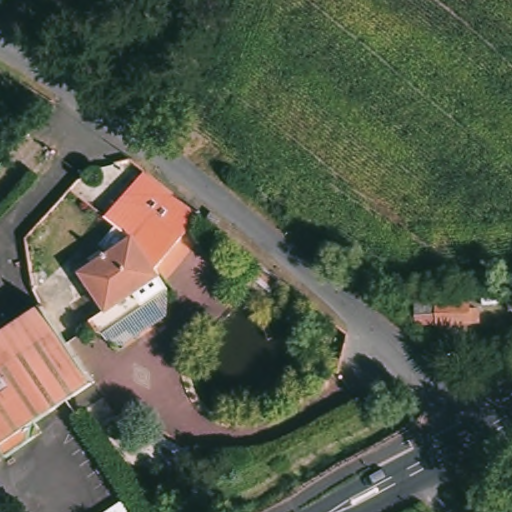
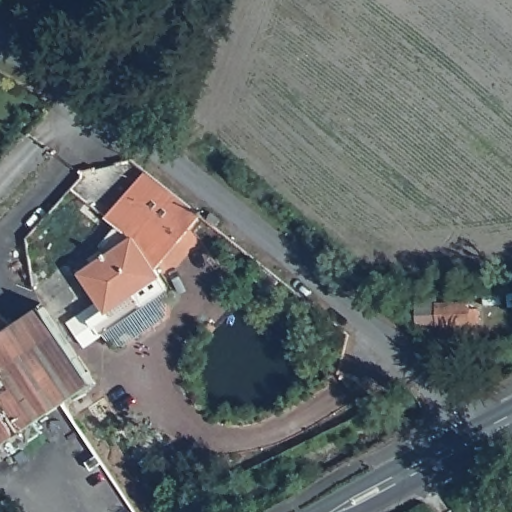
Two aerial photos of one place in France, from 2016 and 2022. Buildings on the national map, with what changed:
unchanged [(144,265),(116,282),(123,293),(92,310),(84,294),(88,292),(68,258),(83,250),(79,243),(91,236),(95,243),(123,227),(101,205),(138,171),(145,177),(173,200),(187,212),(144,265)]
unchanged [(92,310),(123,293),(116,282),(144,265),(156,283),(127,299),(136,319),(93,342),(71,303),(84,294),(92,310)]
unchanged [(448,293),(450,299),(465,294),(469,307),(428,325),(420,304),(448,293)]
unchanged [(18,454),(2,464),(0,460),(0,321),(7,328),(42,305),(91,391),(86,394),(32,429),(39,440),(22,451),(18,454)]

